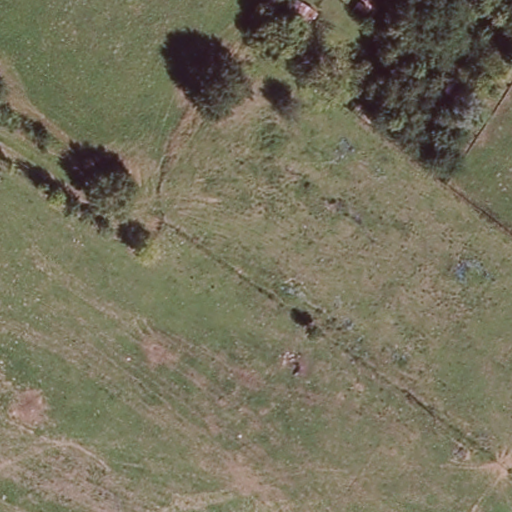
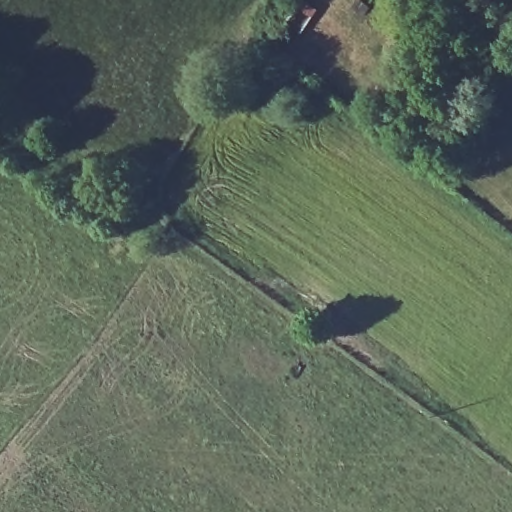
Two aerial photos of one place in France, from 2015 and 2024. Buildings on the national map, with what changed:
[]

